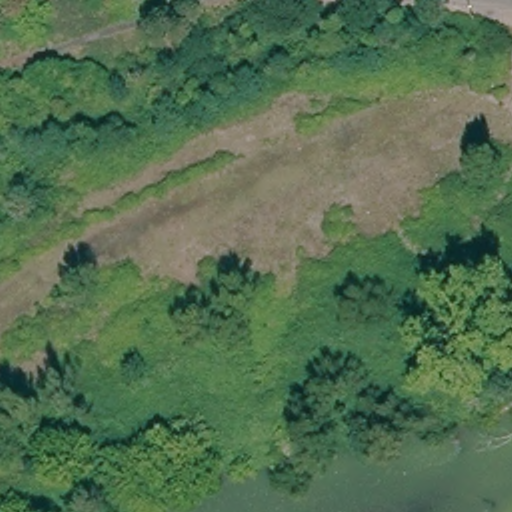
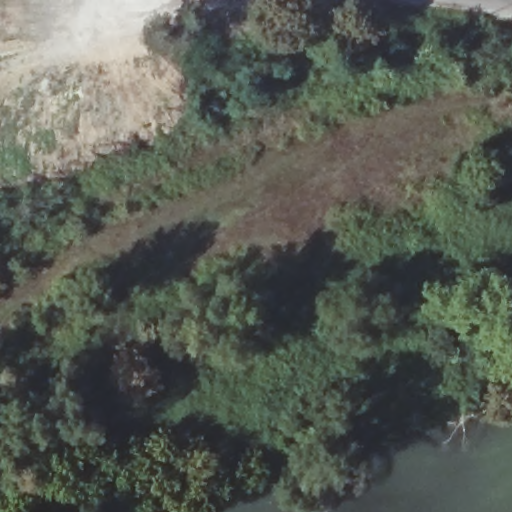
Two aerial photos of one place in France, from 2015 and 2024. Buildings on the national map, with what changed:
[]

